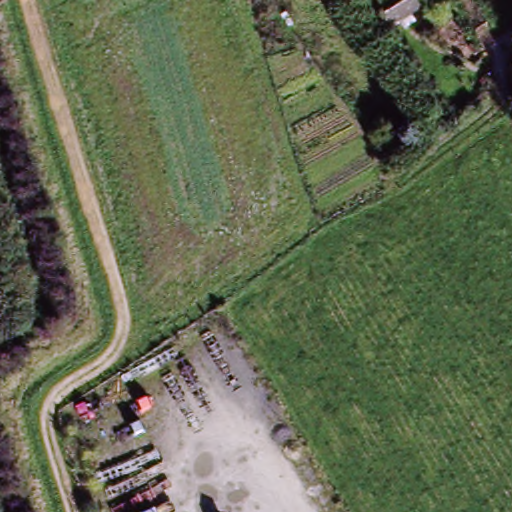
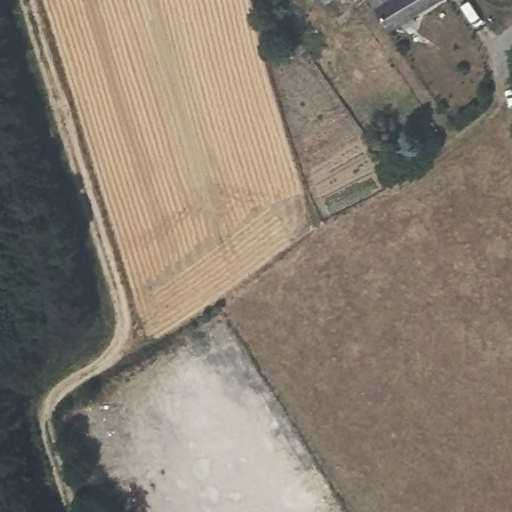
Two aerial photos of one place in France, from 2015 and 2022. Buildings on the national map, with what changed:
unchanged [(383,25),(371,6),(381,0),(427,0),(383,25)]

